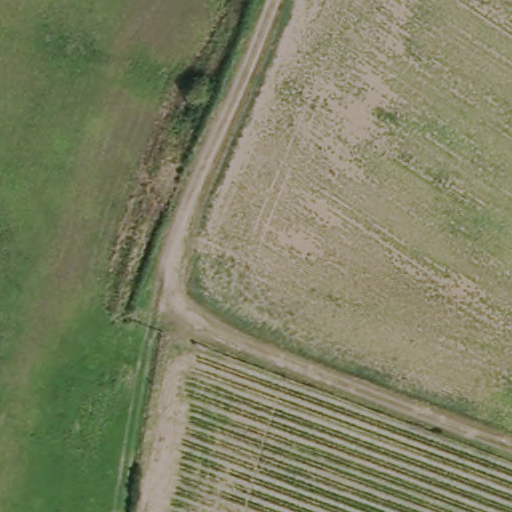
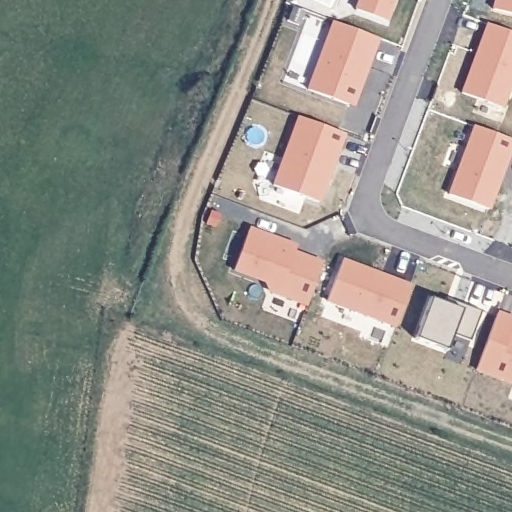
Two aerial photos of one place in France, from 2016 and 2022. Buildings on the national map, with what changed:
new [(385,22),(342,5),(344,0),(393,0),(385,22)]
new [(495,0),(512,0),(512,15),(492,10),(495,0)]
new [(330,21),(377,39),(361,84),(356,82),(347,105),(305,89),(330,21)]
new [(487,25),(512,34),(512,80),(501,108),(462,94),(487,25)]
new [(295,117),(342,135),(317,203),(270,186),(295,117)]
new [(474,127),(512,141),(512,144),(487,211),(448,196),(474,127)]
new [(245,230),(287,245),(285,251),(321,265),(305,307),(267,292),(262,282),(230,271),(245,230)]
new [(340,262),(409,287),(394,328),(325,302),(340,262)]
new [(442,305),(445,299),(461,306),(480,312),(469,342),(451,336),(445,352),(413,341),(429,300),(442,305)]
new [(496,315),(512,321),(512,326),(510,333),(512,334),(512,385),(475,371),(496,315)]

